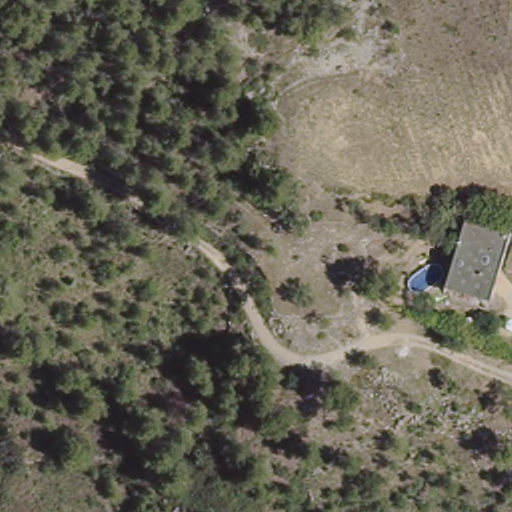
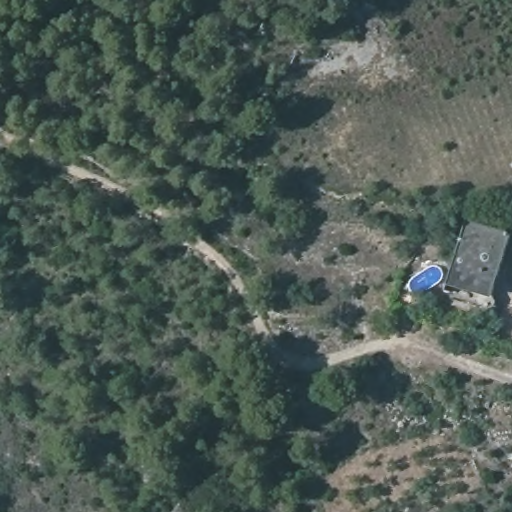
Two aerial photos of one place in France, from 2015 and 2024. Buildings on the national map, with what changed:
unchanged [(440,285),(467,215),(511,232),(501,258),(485,302),(440,285)]

